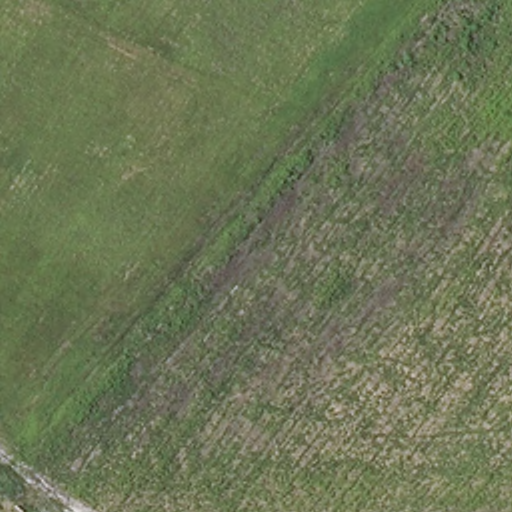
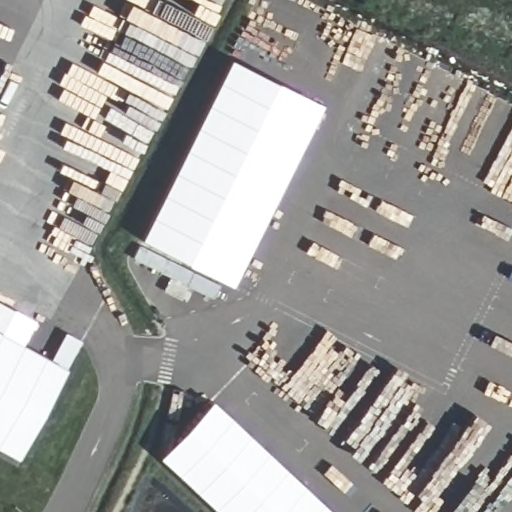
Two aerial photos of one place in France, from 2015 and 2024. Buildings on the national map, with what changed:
new [(313,103),(222,291),(132,246),(224,61),(313,103)]
new [(18,459),(0,449),(0,332),(67,369),(18,459)]
new [(201,404),(320,512),(203,512),(147,461),(201,404)]

